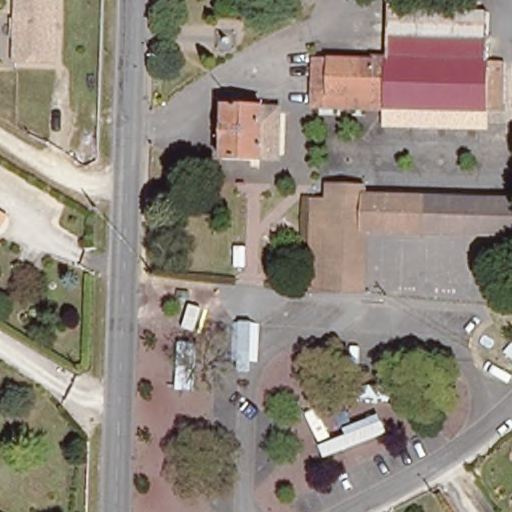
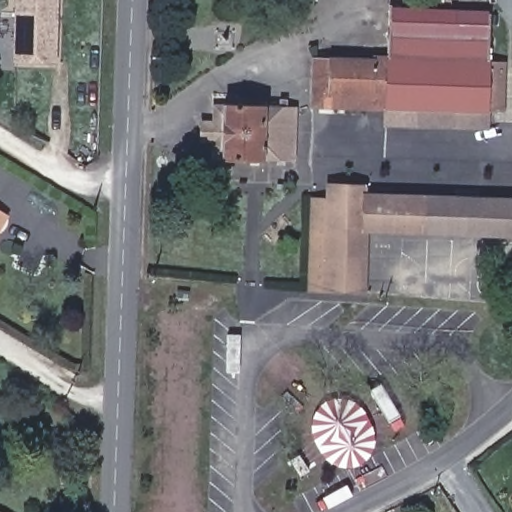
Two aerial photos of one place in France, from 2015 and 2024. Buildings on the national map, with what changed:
unchanged [(16,64),(17,0),(57,0),(56,64),(16,64)]
unchanged [(306,105),(309,61),(364,63),(365,57),(382,57),(384,7),(487,11),(485,60),(501,60),(500,111),(306,105)]
unchanged [(257,104),(257,109),(276,110),(273,157),(256,156),(255,161),(221,158),(224,102),(257,104)]
unchanged [(311,206),(330,207),(331,188),(370,190),(370,202),(512,208),(512,242),(368,236),(328,234),(325,296),(305,294),(311,206)]
unchanged [(0,218),(0,212),(2,214),(0,218)]
unchanged [(328,234),(368,236),(365,298),(325,296),(328,234)]

